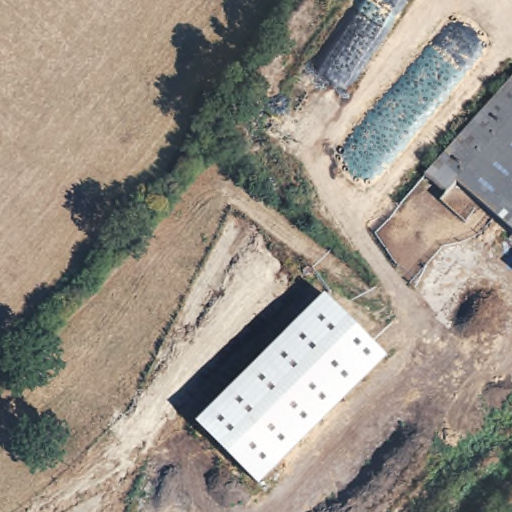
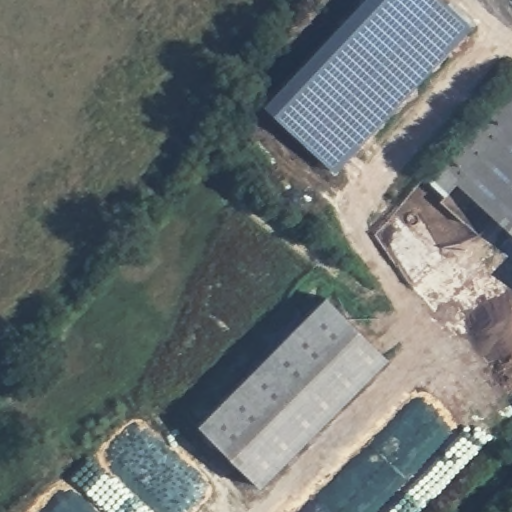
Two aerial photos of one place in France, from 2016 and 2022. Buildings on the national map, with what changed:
new [(361,0),(443,0),(471,26),(335,172),(263,105),(361,0)]
unchanged [(459,186),(454,182),(502,126),(484,109),(512,76),(512,226),(508,231),(459,186)]
unchanged [(484,109),(502,126),(454,182),(459,186),(446,200),(422,176),(484,109)]
unchanged [(512,226),(512,235),(508,231),(512,226)]
unchanged [(325,295),(387,359),(260,488),(197,425),(325,295)]

